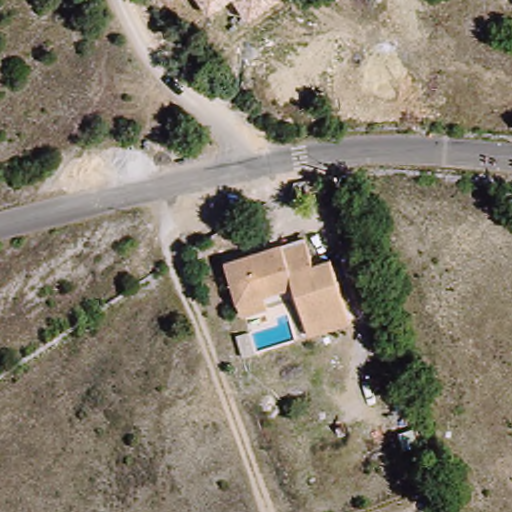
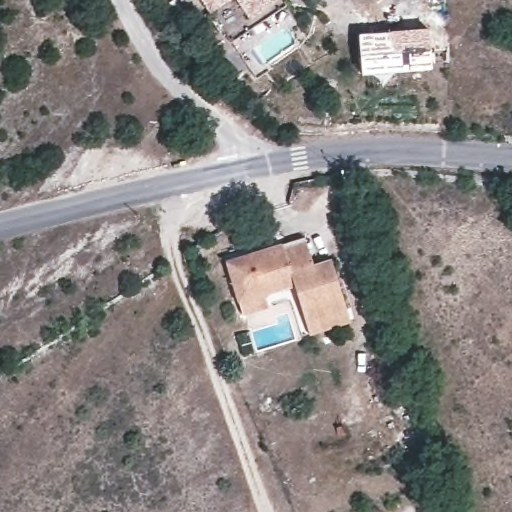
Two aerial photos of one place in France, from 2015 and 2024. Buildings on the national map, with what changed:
unchanged [(208,12),(200,0),(227,0),(208,12)]
unchanged [(249,19),(236,0),(277,0),(249,19)]
new [(429,27),(431,68),(361,75),(358,34),(429,27)]
unchanged [(309,334),(303,316),(292,285),(267,290),(271,301),(243,309),(240,296),(232,269),(228,254),(254,248),(305,235),(314,260),(331,257),(347,304),(352,320),(309,334)]

